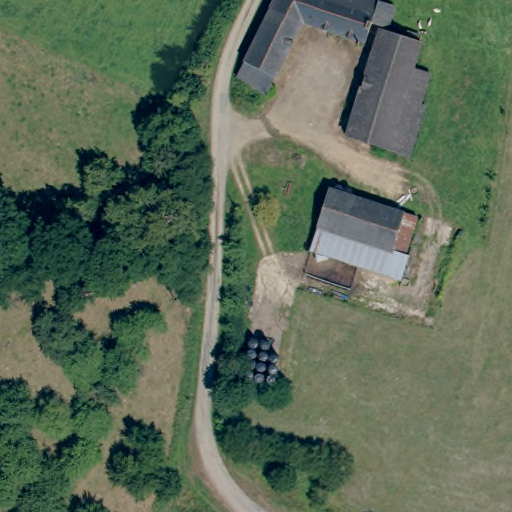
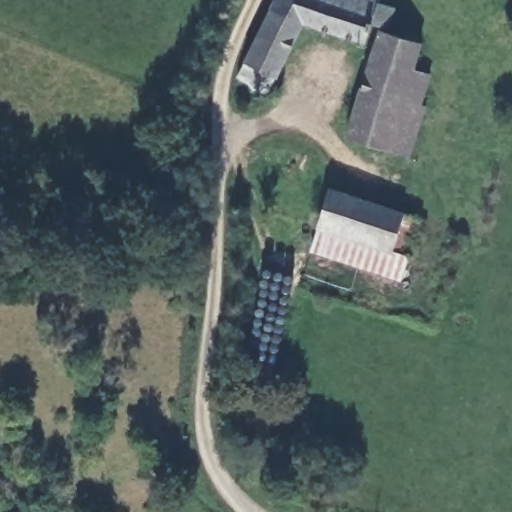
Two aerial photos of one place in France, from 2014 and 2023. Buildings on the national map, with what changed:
unchanged [(274,0),(375,0),(374,1),(392,6),(387,21),(384,30),(404,36),(404,32),(418,37),(416,41),(419,42),(411,67),(426,72),(417,102),(400,97),(400,99),(386,147),(344,132),(377,27),(367,24),(362,41),(302,22),(264,94),(249,86),(237,72),(274,0)]
unchanged [(421,104),(406,153),(386,147),(400,99),(400,97),(417,102),(421,104)]
unchanged [(402,280),(310,251),(317,229),(328,193),(402,217),(416,221),(405,256),(410,257),(402,280)]

